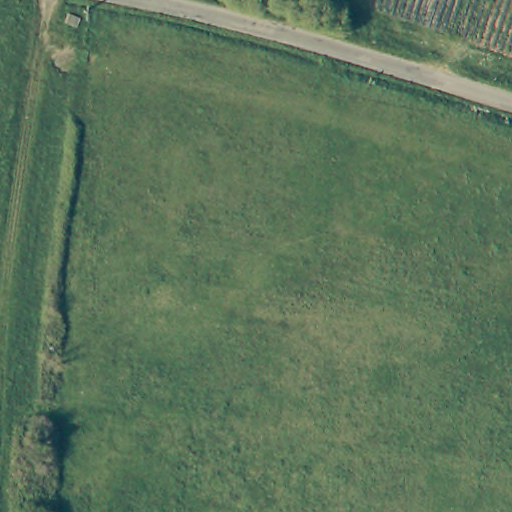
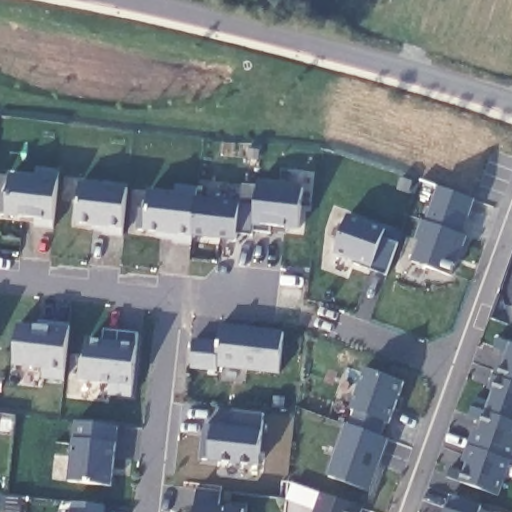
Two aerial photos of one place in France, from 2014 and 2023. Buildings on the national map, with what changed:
new [(54,229),(35,227),(36,219),(6,215),(0,214),(0,208),(2,193),(11,194),(11,174),(38,177),(39,170),(60,172),(54,229)]
new [(125,228),(77,223),(81,182),(128,187),(125,228)]
new [(300,230),(286,228),(285,232),(256,230),(256,228),(258,203),(260,182),(304,186),(300,230)]
new [(176,193),(177,185),(197,188),(197,194),(197,197),(193,232),(193,237),(146,232),(138,228),(141,208),(150,208),(150,190),(176,193)]
new [(464,234),(468,235),(453,274),(412,260),(419,240),(416,239),(422,219),(426,220),(438,187),(474,198),(464,234)]
new [(197,197),(258,203),(256,230),(255,235),(238,233),(237,238),(193,232),(197,197)]
new [(386,273),(354,263),(355,260),(335,253),(349,216),(387,229),(384,236),(397,242),(386,273)]
new [(35,325),(41,325),(39,319),(70,323),(70,329),(65,370),(14,365),(18,324),(35,325)]
new [(280,373),(218,366),(218,370),(191,368),(195,338),(220,339),(221,323),(282,331),(280,373)]
new [(133,387),(131,396),(108,393),(109,383),(84,379),(88,337),(104,339),(104,328),(138,332),(133,387)]
new [(464,470),(466,461),(461,459),(467,443),(473,427),(478,429),(482,419),(469,415),(476,396),(489,400),(492,390),(487,388),(491,378),(498,379),(506,353),(493,348),(497,337),(511,343),(512,343),(512,459),(500,494),(459,480),(448,476),(451,466),(464,470)]
new [(389,423),(385,421),(379,436),(389,439),(370,490),(327,474),(346,422),(348,423),(354,409),(349,407),(366,366),(405,381),(389,423)]
new [(261,466),(197,457),(200,419),(227,423),(229,407),(266,411),(261,466)]
new [(113,485),(69,481),(73,438),(75,421),(119,426),(113,485)]
new [(222,491),(221,505),(243,508),(243,512),(195,512),(198,488),(222,491)]
new [(361,512),(315,512),(322,493),(362,507),(361,512)]
new [(478,512),(445,512),(447,509),(452,495),(481,506),(478,512)]
new [(72,512),(73,501),(105,504),(104,512),(72,512)]

